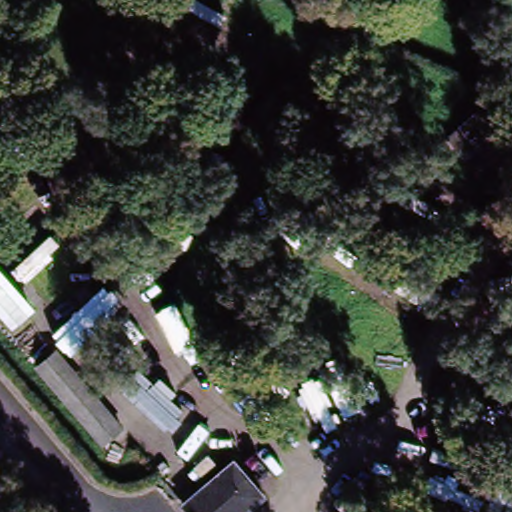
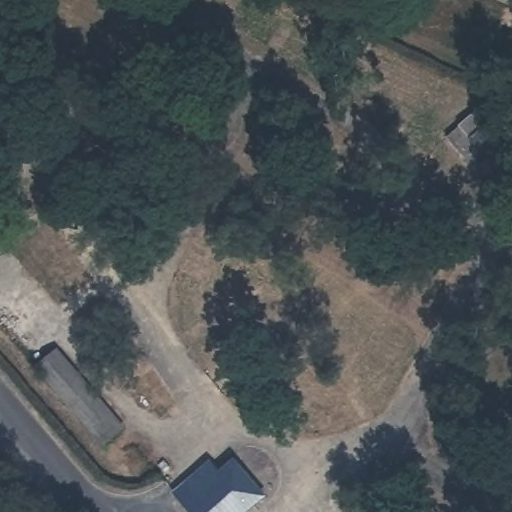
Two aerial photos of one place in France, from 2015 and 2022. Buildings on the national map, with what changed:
unchanged [(484,113),(510,144),(478,171),(453,139),(484,113)]
unchanged [(62,348),(127,424),(108,440),(43,364),(62,348)]
unchanged [(193,508),(188,503),(237,462),(264,496),(245,512),(196,512),(193,508)]

